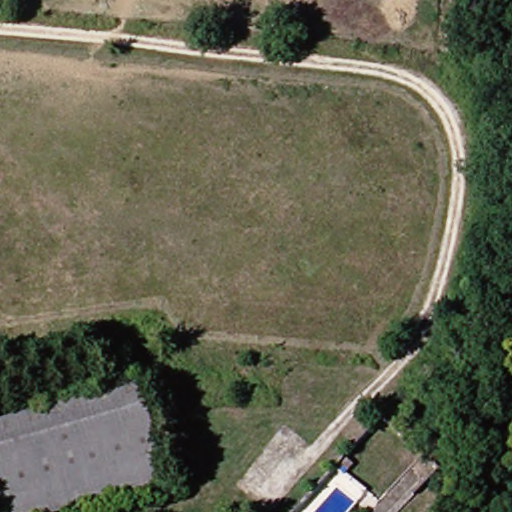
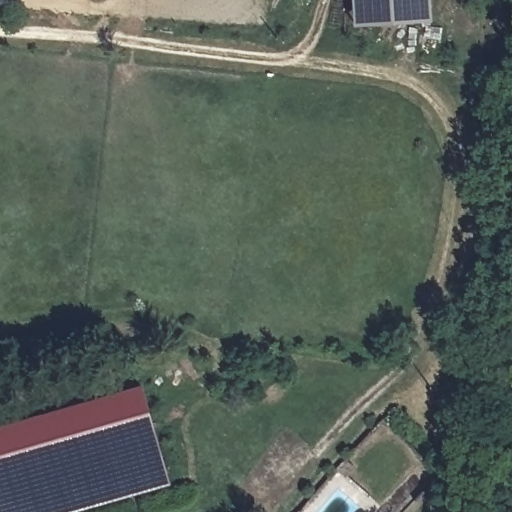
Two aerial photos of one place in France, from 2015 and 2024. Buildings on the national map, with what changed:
new [(431,0),(432,21),(355,26),(353,0),(431,0)]
unchanged [(180,484),(81,512),(3,512),(0,503),(0,431),(152,390),(180,484)]
unchanged [(329,465),(338,475),(327,485),(317,476),(329,465)]

